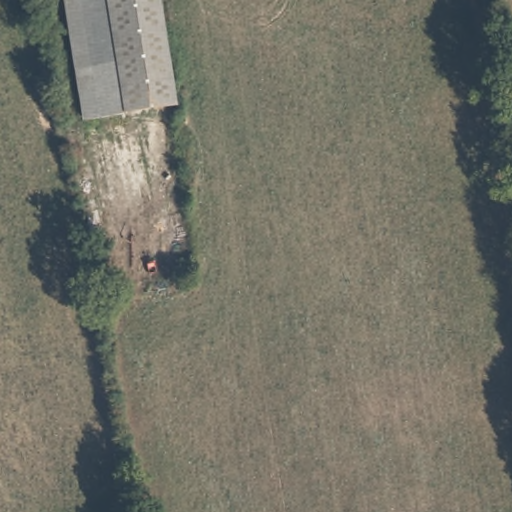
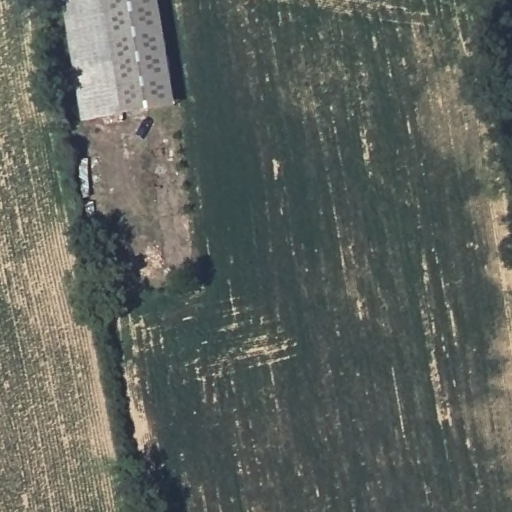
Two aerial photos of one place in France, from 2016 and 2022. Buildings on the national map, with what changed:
unchanged [(171,104),(80,117),(60,0),(154,0),(171,104)]

